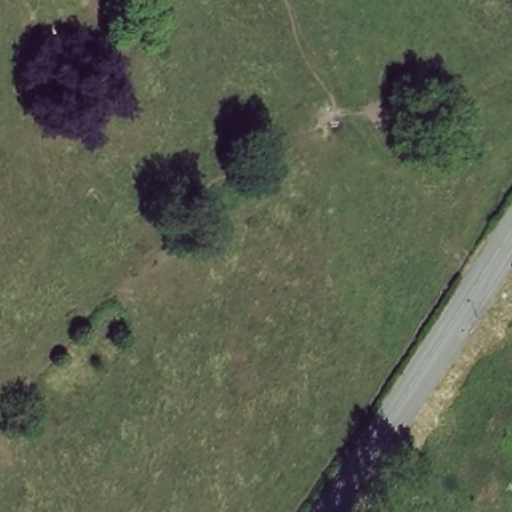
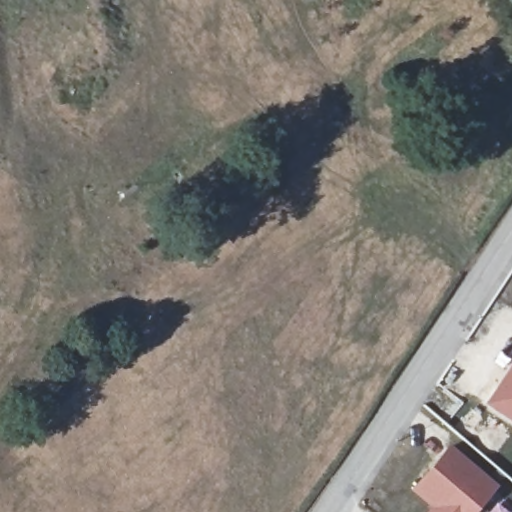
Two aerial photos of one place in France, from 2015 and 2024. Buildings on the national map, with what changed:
new [(483,397),(512,359),(512,422),(483,397)]
new [(495,484),(471,512),(446,512),(418,490),(451,447),(495,484)]

